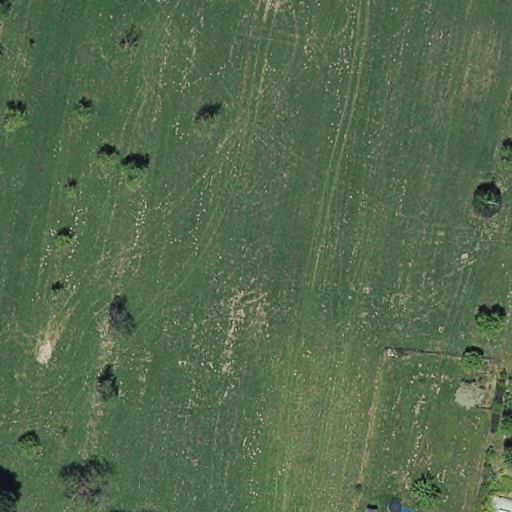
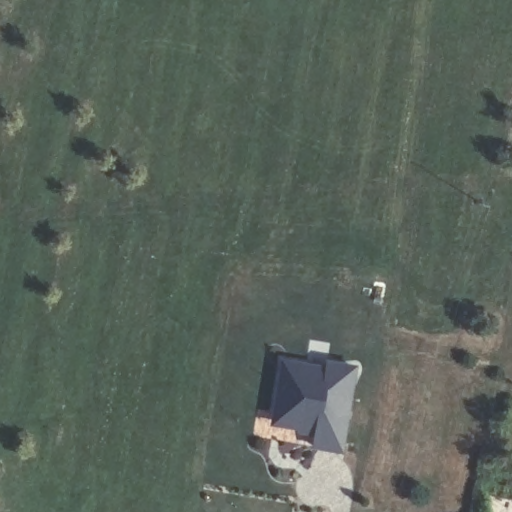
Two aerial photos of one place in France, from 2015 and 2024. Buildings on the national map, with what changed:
new [(285,362),(310,367),(310,372),(327,375),(329,364),(357,368),(342,451),(315,447),(317,431),(285,426),(277,413),(285,362)]

